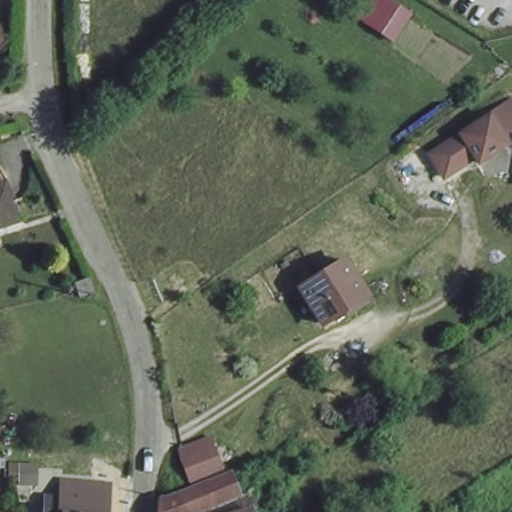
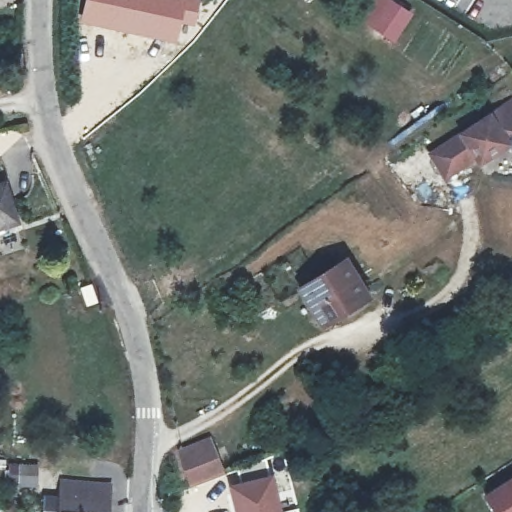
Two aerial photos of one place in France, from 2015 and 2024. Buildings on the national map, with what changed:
new [(200,0),(196,26),(181,24),(178,44),(79,24),(84,0),(200,0)]
unchanged [(512,93),(512,136),(503,134),(476,151),(472,145),(442,165),(428,145),(509,92),(512,93)]
unchanged [(13,220),(0,224),(0,185),(3,184),(13,220)]
unchanged [(346,260),(374,302),(349,317),(344,310),(325,323),(302,290),(346,260)]
unchanged [(88,293),(88,300),(75,300),(74,296),(74,285),(87,283),(88,293)]
unchanged [(180,466),(209,455),(220,480),(189,490),(180,466)]
new [(39,463),(38,488),(16,487),(17,480),(0,480),(0,459),(39,463)]
new [(279,512),(234,512),(224,477),(267,465),(279,512)]
new [(512,475),(512,512),(492,512),(481,495),(512,475)]
demolished [(246,491),(253,512),(185,512),(235,495),(246,491)]
unchanged [(54,510),(55,506),(102,509),(102,511),(102,512),(54,512),(54,510)]

